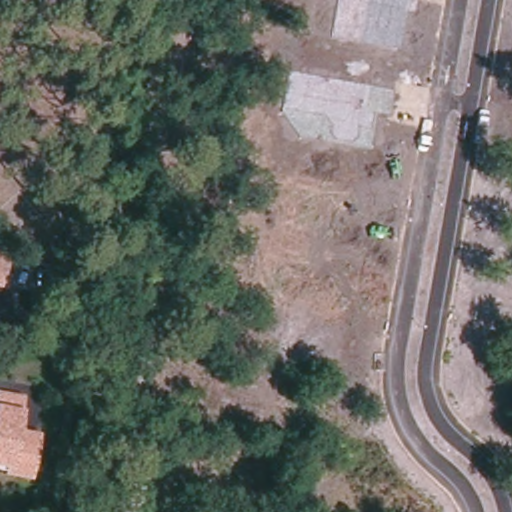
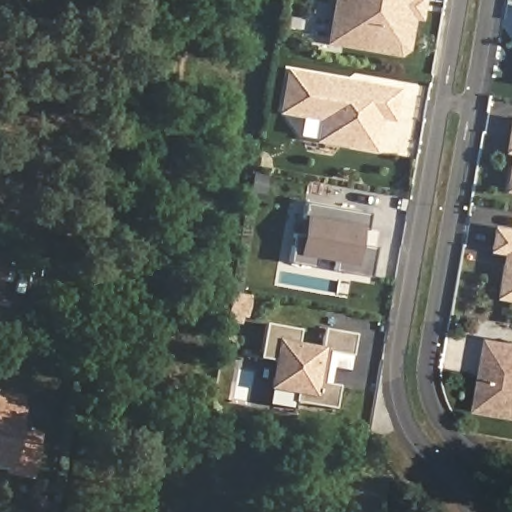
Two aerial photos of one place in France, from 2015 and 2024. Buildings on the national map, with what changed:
new [(421,20),(415,19),(408,50),(400,56),(325,42),(333,0),(424,0),(421,20)]
new [(382,120),(377,152),(315,141),(318,120),(277,112),(285,67),(401,86),(395,122),(382,120)]
new [(504,191),(511,154),(503,152),(510,117),(512,117),(512,192),(504,191)]
new [(288,262),(293,234),(300,235),(305,202),(370,213),(367,228),(362,227),(360,243),(374,246),(368,276),(333,270),(336,260),(318,257),(316,267),(288,262)]
new [(495,298),(502,254),(488,251),(493,226),(512,229),(512,301),(495,298)]
unchanged [(0,285),(0,254),(9,257),(1,285),(0,285)]
new [(352,357),(330,353),(325,384),(338,386),(334,411),(295,404),(297,395),(269,390),(273,361),(260,358),(265,323),(300,330),(298,343),(321,347),(323,329),(355,335),(352,357)]
new [(476,412),(490,339),(512,343),(512,419),(476,412)]
unchanged [(17,432),(37,437),(30,476),(9,472),(10,466),(0,464),(0,395),(22,399),(17,432)]

